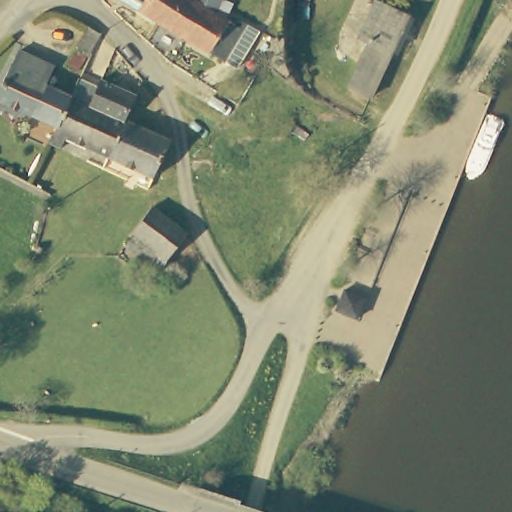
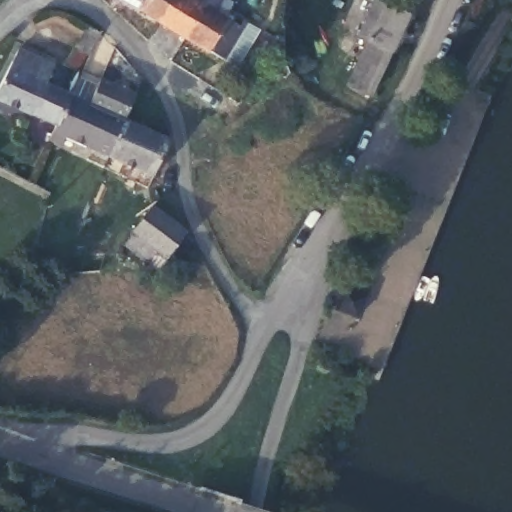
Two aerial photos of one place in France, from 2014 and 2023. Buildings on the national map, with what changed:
unchanged [(136,0),(177,0),(166,17),(142,3),(136,0)]
unchanged [(166,17),(177,0),(211,0),(192,32),(166,17)]
unchanged [(211,0),(224,0),(221,5),(245,20),(249,15),(264,24),(241,62),(192,32),(211,0)]
unchanged [(374,0),(377,0),(407,13),(390,52),(367,41),(357,36),(374,0)]
unchanged [(92,23),(102,28),(80,69),(71,64),(92,23)]
unchanged [(346,86),(367,41),(390,52),(370,93),(367,96),(346,86)]
unchanged [(41,136),(48,120),(0,98),(0,96),(23,48),(58,65),(53,76),(60,79),(57,85),(74,93),(51,140),(50,142),(41,136)]
unchanged [(111,156),(91,147),(68,137),(64,146),(51,140),(74,93),(84,73),(103,82),(105,78),(140,95),(129,118),(175,140),(157,178),(111,156)]
unchanged [(123,241),(132,230),(130,229),(151,203),(185,231),(164,256),(155,267),(146,259),(123,241)]
unchanged [(336,308),(343,293),(361,300),(353,316),(336,308)]

